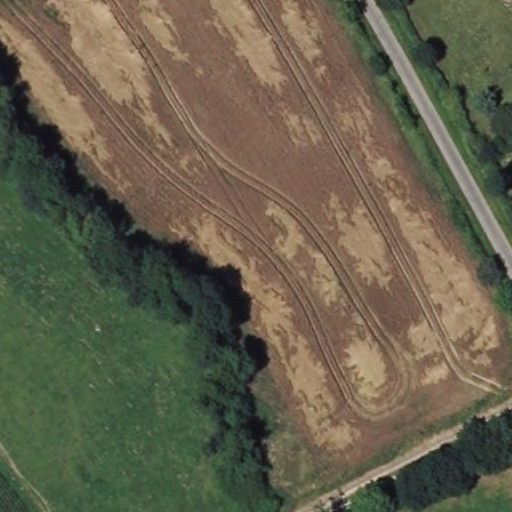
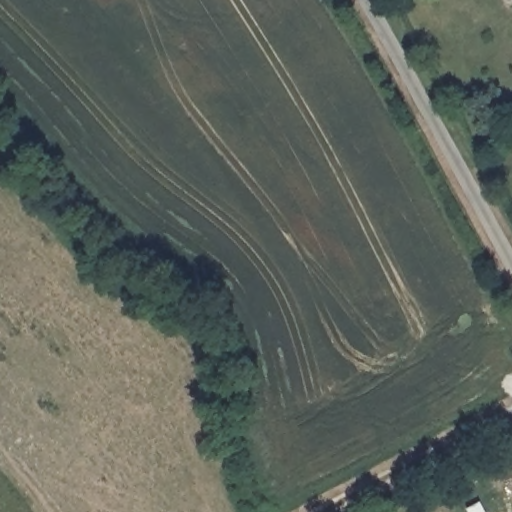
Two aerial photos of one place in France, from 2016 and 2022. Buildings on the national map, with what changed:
[]

